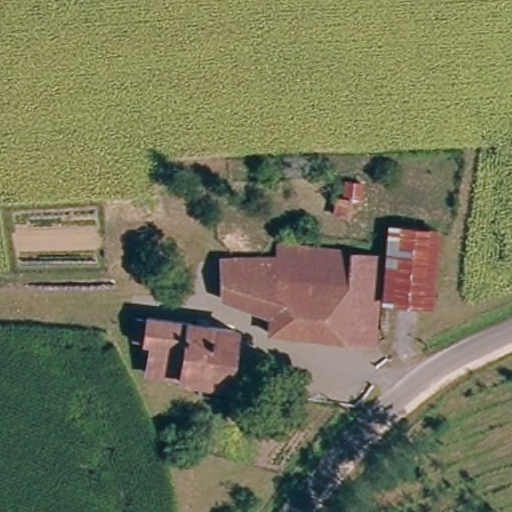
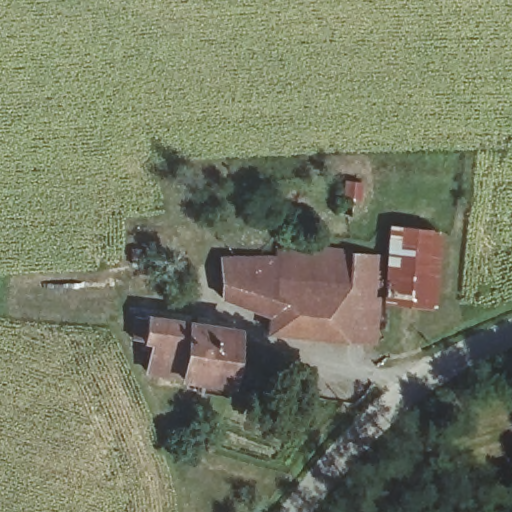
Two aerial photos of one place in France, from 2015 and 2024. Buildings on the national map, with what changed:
unchanged [(346,194),(345,212),(328,211),(329,192),(337,193),(341,178),(355,179),(353,194),(346,194)]
unchanged [(440,236),(434,307),(389,303),(392,262),(395,232),(440,236)]
unchanged [(281,260),(282,248),(360,258),(351,342),(274,335),(276,320),(281,260)]
unchanged [(228,254),(281,260),(276,320),(229,301),(228,254)]
unchanged [(360,258),(388,261),(378,346),(351,342),(360,258)]
unchanged [(228,393),(201,390),(202,379),(149,373),(151,348),(142,347),(143,337),(133,336),(136,314),(236,325),(230,382),(228,393)]

